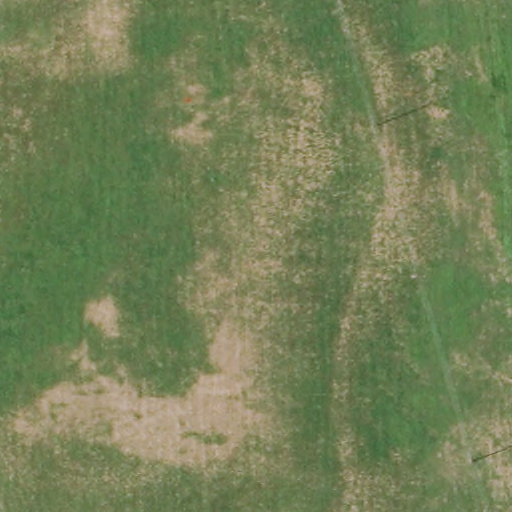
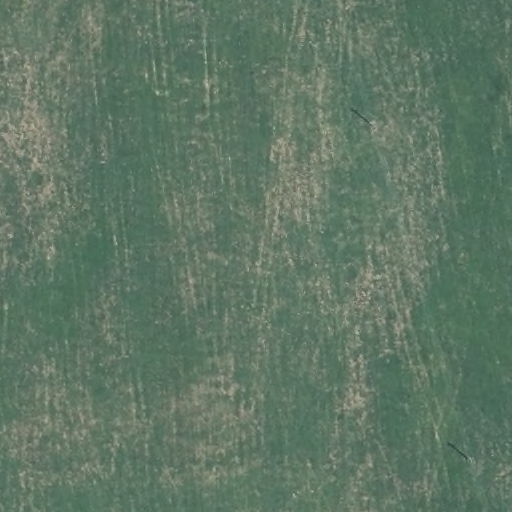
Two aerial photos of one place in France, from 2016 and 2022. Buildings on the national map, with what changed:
[]

